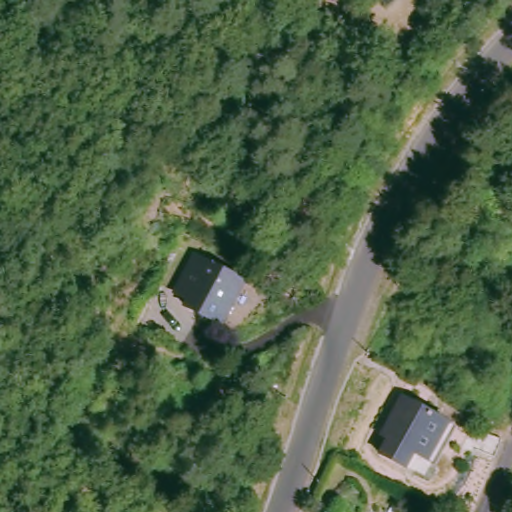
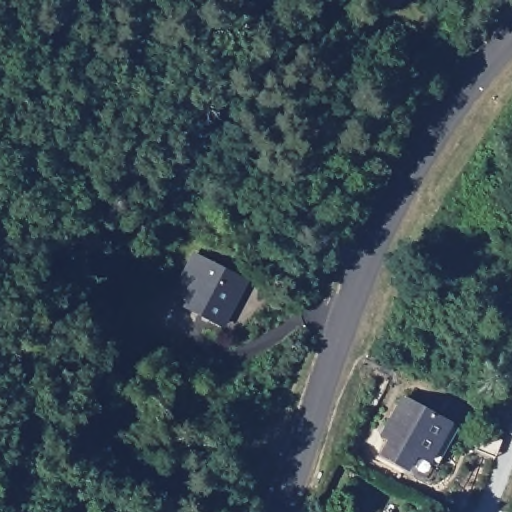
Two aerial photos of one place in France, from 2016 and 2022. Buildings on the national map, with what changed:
unchanged [(387,0),(394,0),(390,4),(387,0)]
unchanged [(248,272),(231,320),(195,305),(195,299),(179,291),(194,251),(248,272)]
unchanged [(435,460),(427,455),(415,448),(405,465),(383,451),(393,435),(385,428),(407,391),(449,418),(457,423),(435,460)]
unchanged [(510,450),(503,468),(471,454),(479,435),(510,450)]

